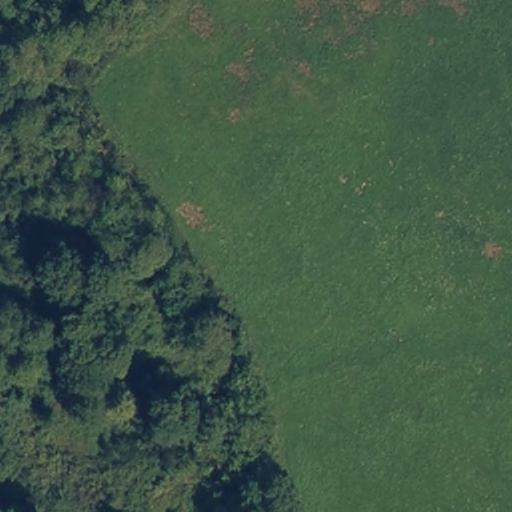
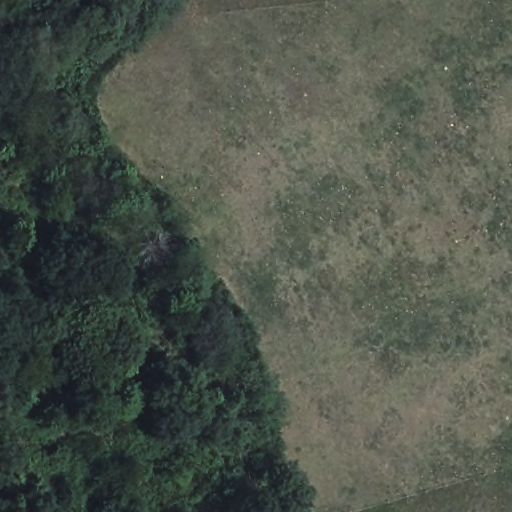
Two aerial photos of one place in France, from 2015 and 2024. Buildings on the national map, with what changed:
[]

